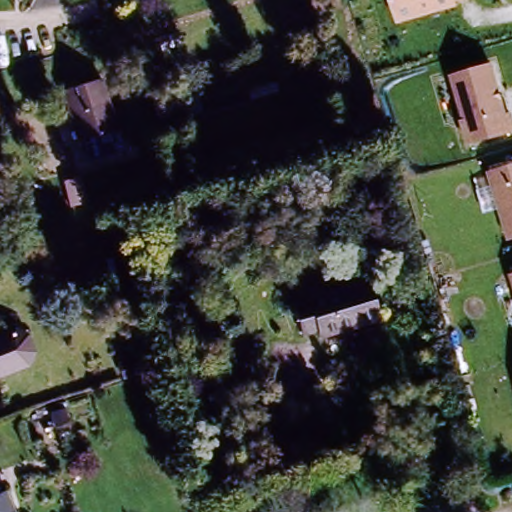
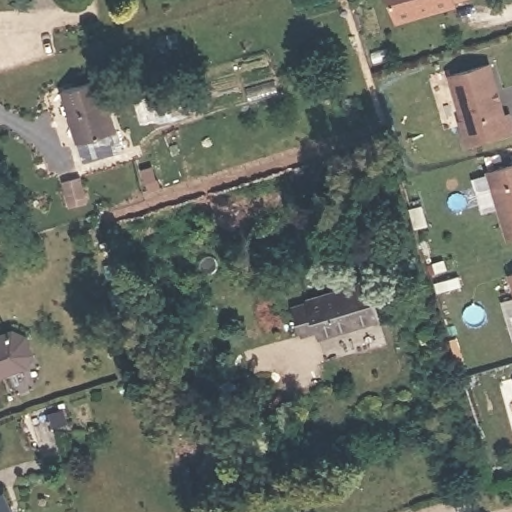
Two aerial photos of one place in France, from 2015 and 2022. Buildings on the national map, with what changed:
unchanged [(456,3),(457,7),(394,24),(387,0),(464,0),(456,3)]
unchanged [(493,62),(512,129),(512,134),(465,147),(447,76),(493,62)]
unchanged [(97,82),(119,152),(79,164),(57,94),(97,82)]
unchanged [(512,166),(512,241),(505,244),(485,173),(512,166)]
unchanged [(512,273),(512,290),(507,274),(512,273)]
unchanged [(300,330),(294,301),(369,278),(380,316),(317,334),(315,326),(300,330)]
unchanged [(13,348),(7,362),(2,365),(0,366),(0,327),(3,326),(13,348)]
unchanged [(0,512),(0,510),(1,512),(0,512)]

